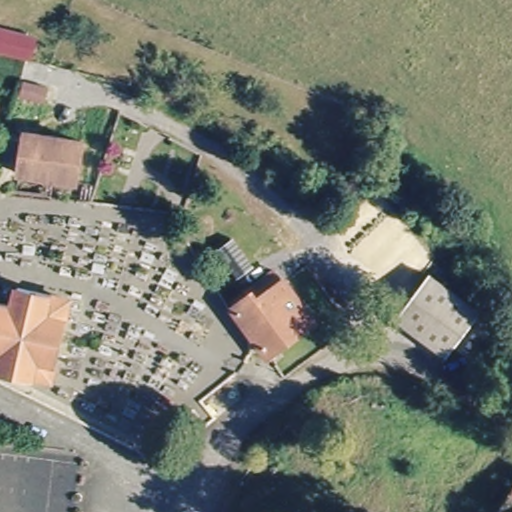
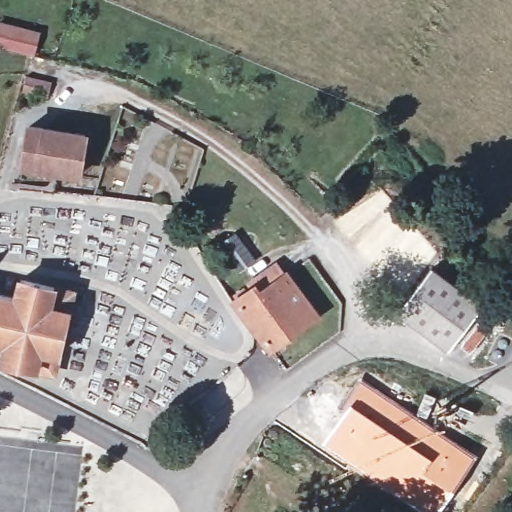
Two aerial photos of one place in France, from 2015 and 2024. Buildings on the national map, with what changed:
unchanged [(0,31),(3,22),(35,32),(29,56),(0,46),(0,31)]
unchanged [(86,135),(80,172),(28,170),(34,127),(86,135)]
unchanged [(246,230),(266,257),(246,272),(227,245),(246,230)]
unchanged [(245,305),(266,292),(260,283),(290,262),(303,280),(329,313),(279,350),(270,340),(245,305)]
unchanged [(491,303),(461,353),(406,321),(436,271),(491,303)]
unchanged [(28,279),(79,288),(64,363),(11,355),(15,338),(0,335),(0,287),(24,291),(28,279)]
new [(349,401),(361,377),(476,456),(437,512),(422,512),(323,444),(349,401)]

